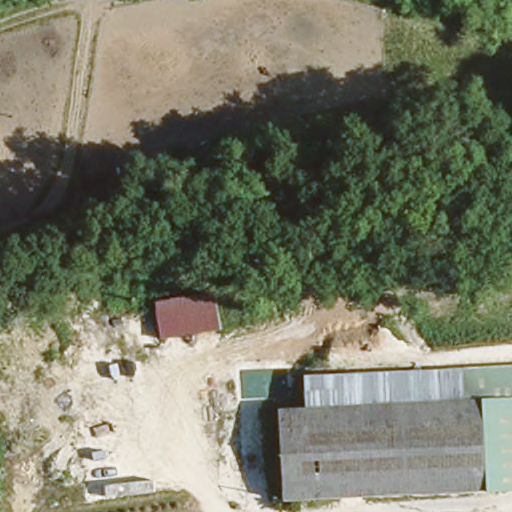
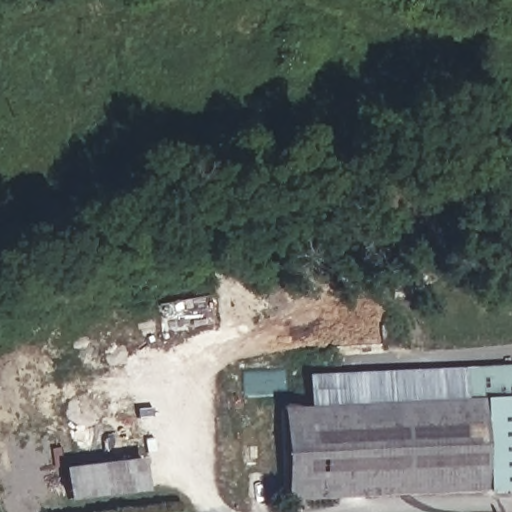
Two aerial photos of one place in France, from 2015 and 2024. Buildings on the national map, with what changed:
unchanged [(215,294),(221,331),(163,340),(157,303),(215,294)]
unchanged [(308,375),(512,365),(512,484),(489,486),(486,396),(308,402),(308,375)]
unchanged [(489,486),(290,492),(287,402),(308,402),(486,396),(489,486)]
new [(140,459),(144,491),(68,500),(64,468),(140,459)]

